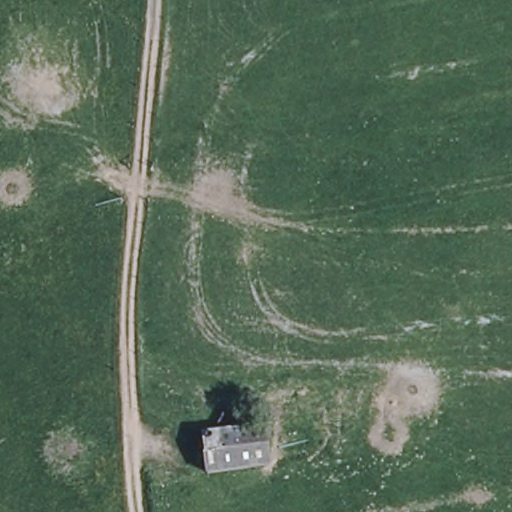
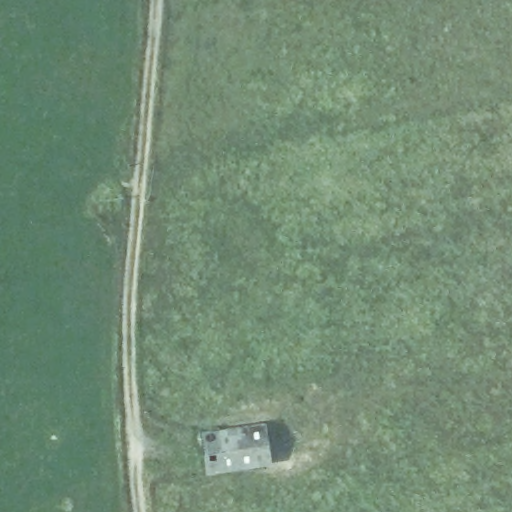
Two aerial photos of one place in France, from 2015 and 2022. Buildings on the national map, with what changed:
unchanged [(203,451),(201,431),(267,422),(273,463),(205,472),(203,451)]

